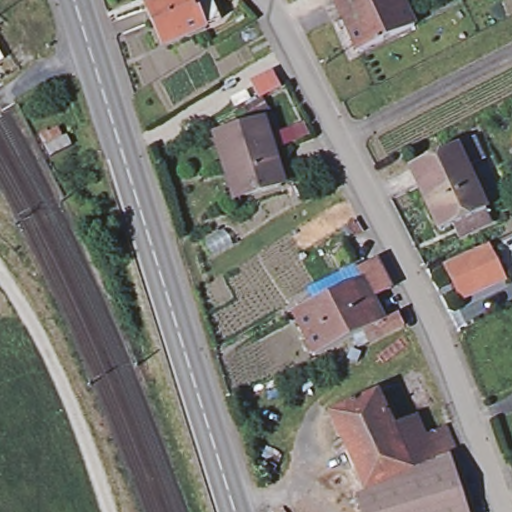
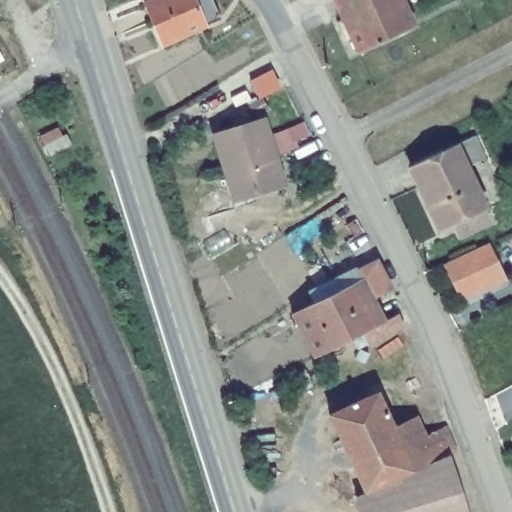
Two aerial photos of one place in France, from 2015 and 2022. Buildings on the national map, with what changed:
unchanged [(202,25),(161,44),(145,10),(141,3),(148,0),(209,0),(215,12),(218,18),(202,25)]
unchanged [(343,14),(336,0),(373,0),(343,14)]
unchanged [(418,23),(360,49),(343,14),(373,0),(407,0),(418,23)]
unchanged [(230,168),(224,170),(213,133),(260,118),(275,168),(280,184),(240,197),(238,192),(230,168)]
unchanged [(438,229),(420,184),(419,182),(411,163),(440,151),(456,143),(462,141),(475,135),(485,157),(473,162),(466,166),(485,208),(438,229)]
unchanged [(488,243),(506,284),(458,305),(440,264),(488,243)]
unchanged [(316,284),(375,255),(388,282),(368,291),(360,273),(321,293),(316,284)]
unchanged [(350,333),(312,352),(290,309),(321,293),(360,273),(368,291),(380,315),(394,309),(401,321),(366,339),(355,345),(350,333)]
unchanged [(326,415),(374,394),(389,428),(390,431),(343,451),(326,415)]
unchanged [(389,428),(411,417),(421,438),(443,429),(452,450),(443,453),(407,470),(390,431),(389,428)]
unchanged [(359,512),(353,498),(362,493),(343,451),(390,431),(407,470),(443,453),(462,512),(359,512)]

